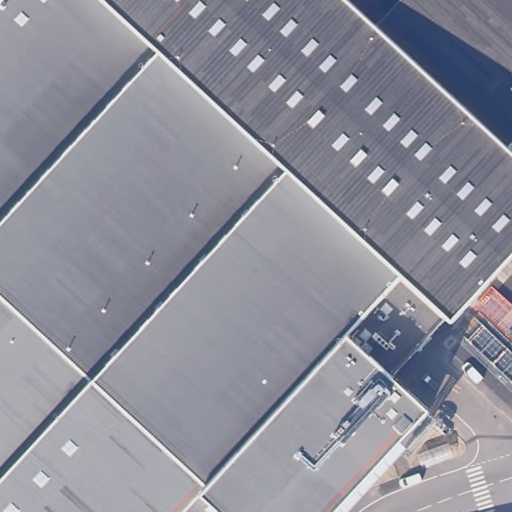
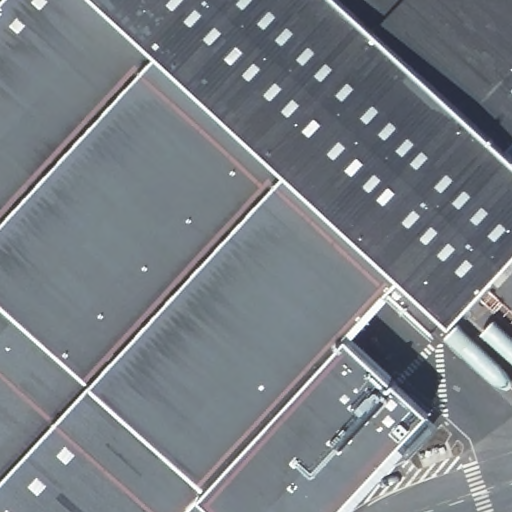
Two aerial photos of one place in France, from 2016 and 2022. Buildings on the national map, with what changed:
unchanged [(2,0),(0,2),(0,0),(2,0)]
unchanged [(446,317),(391,376),(347,336),(268,421),(207,487),(0,296),(0,2),(2,0),(345,0),(507,146),(512,151),(512,255),(451,321),(446,317)]
unchanged [(345,0),(512,0),(512,142),(507,146),(345,0)]
unchanged [(334,512),(0,512),(0,296),(207,487),(268,421),(347,336),(370,357),(391,376),(430,409),(334,512)]

